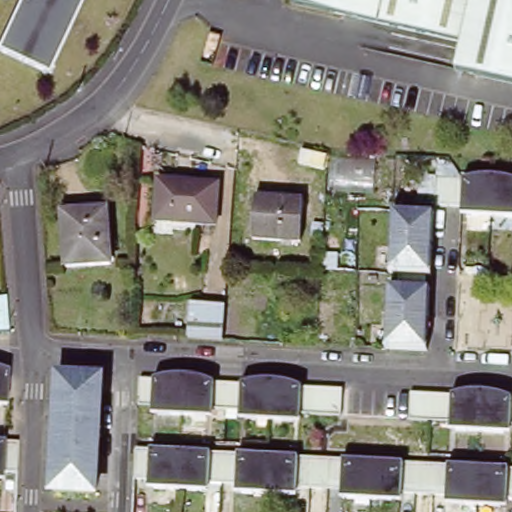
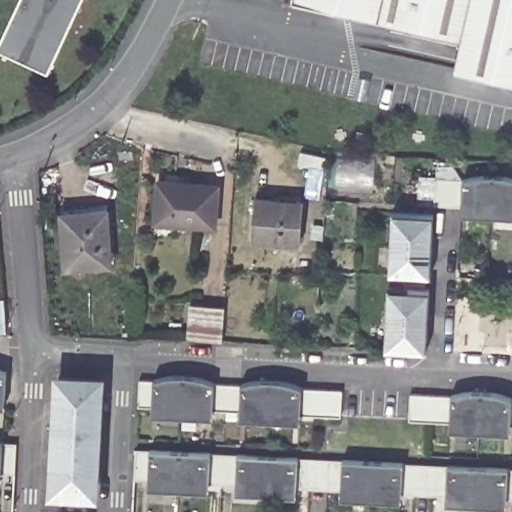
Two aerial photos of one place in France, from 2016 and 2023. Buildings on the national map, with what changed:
unchanged [(47,72),(0,51),(0,38),(18,0),(82,0),(47,72)]
unchanged [(512,42),(292,0),(512,0),(512,42)]
unchanged [(459,39),(292,1),(292,0),(512,42),(512,79),(452,66),(459,39)]
unchanged [(324,154),(321,166),(292,159),(295,146),(324,154)]
unchanged [(465,207),(440,206),(442,180),(465,181),(474,179),(485,176),(495,176),(497,176),(503,176),(512,179),(512,219),(465,217),(465,207)]
unchanged [(220,177),(220,220),(156,220),(155,177),(220,177)]
unchanged [(308,205),(304,245),(255,239),(259,199),(308,205)]
unchanged [(63,215),(94,212),(109,211),(111,265),(90,266),(67,267),(63,215)]
unchanged [(393,351),(395,288),(407,289),(408,276),(397,275),(399,214),(439,215),(437,277),(430,277),(430,290),(436,291),(433,353),(393,351)]
unchanged [(320,232),(320,245),(312,245),(312,232),(320,232)]
unchanged [(227,341),(192,338),(196,303),(230,306),(227,341)]
unchanged [(0,409),(0,371),(2,371),(11,374),(9,410),(0,409)]
unchanged [(154,380),(169,381),(180,379),(190,378),(199,378),(200,378),(210,380),(222,383),(227,384),(240,385),(259,386),(266,383),(275,381),(282,381),(285,381),(291,382),(302,385),(312,389),(324,390),(357,392),(355,417),(322,415),(312,415),(310,425),(282,423),(252,421),(252,412),(225,411),(224,421),(165,417),(166,408),(152,408),(154,380)]
unchanged [(106,381),(105,398),(100,398),(99,425),(103,425),(102,455),(98,454),(96,480),(100,480),(99,498),(55,495),(57,466),(52,465),(55,408),(61,408),(62,379),(106,381)]
unchanged [(417,395),(457,396),(465,393),(475,391),(482,391),(484,391),(491,392),(499,393),(505,396),(511,399),(512,399),(512,436),(452,433),(453,423),(440,423),(415,421),(417,395)]
unchanged [(10,477),(10,485),(0,485),(0,446),(13,446),(25,447),(23,478),(10,477)]
unchanged [(238,459),(280,461),(322,463),(334,464),(345,465),(384,466),(425,468),(438,469),(450,470),(492,471),(512,473),(512,511),(459,508),(460,499),(414,497),(413,506),(354,503),(354,495),(311,492),(310,501),(248,498),(249,489),(224,487),(224,497),(165,494),(165,485),(150,485),(152,455),(195,457),(238,459)]

